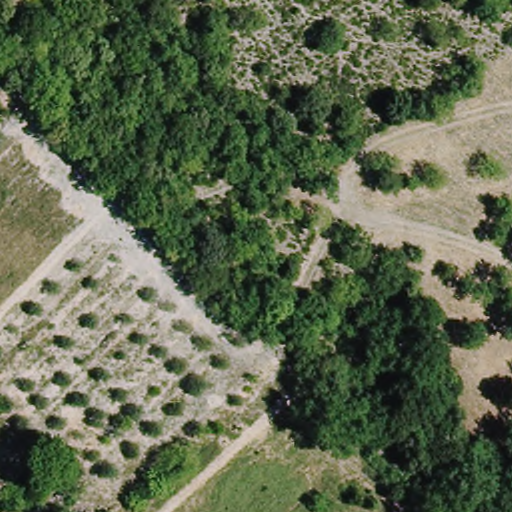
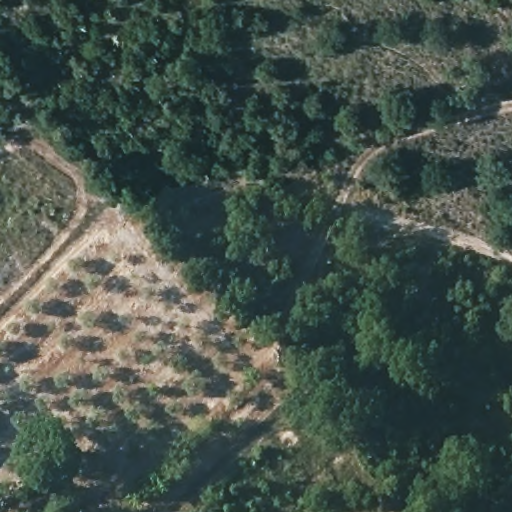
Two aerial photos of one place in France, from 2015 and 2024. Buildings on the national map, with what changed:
unchanged [(50,482),(36,495),(23,483),(38,469),(50,482)]

